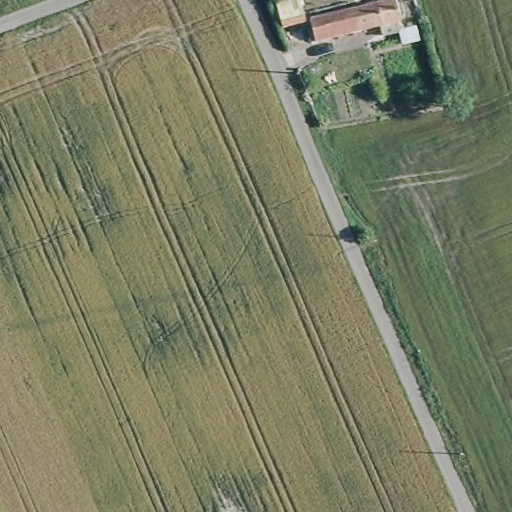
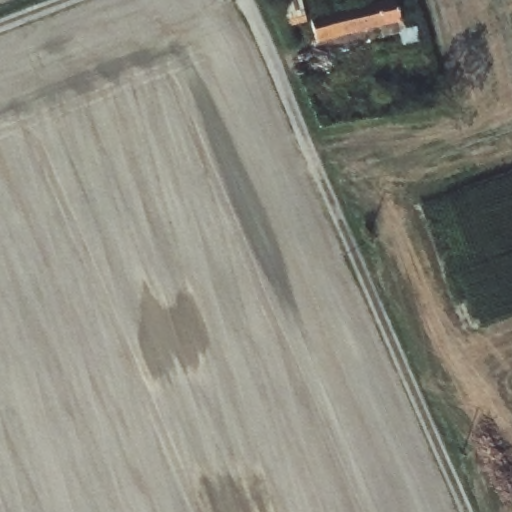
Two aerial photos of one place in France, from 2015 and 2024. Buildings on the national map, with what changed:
unchanged [(271,0),(297,0),(302,21),(279,26),(271,0)]
unchanged [(404,33),(415,31),(418,47),(404,50),(403,44),(382,49),(378,28),(309,45),(302,21),(391,0),(393,0),(404,33)]

